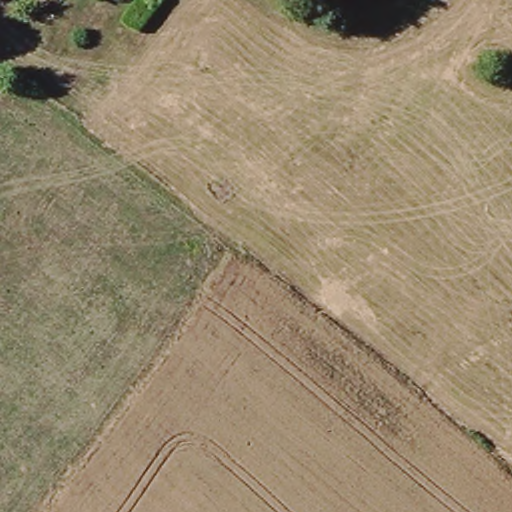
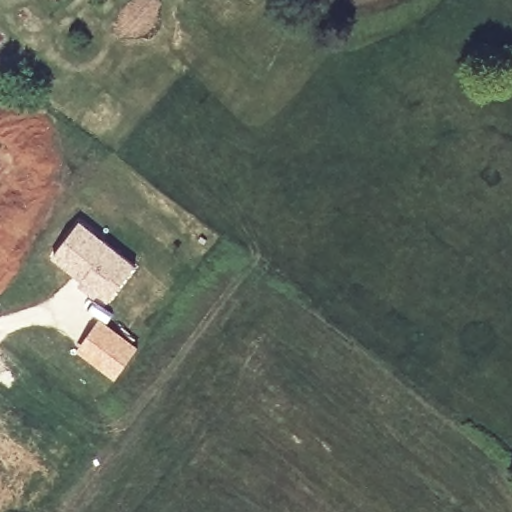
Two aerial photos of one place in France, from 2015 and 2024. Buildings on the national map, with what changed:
new [(79,219),(137,264),(108,302),(49,257),(79,219)]
new [(100,316),(139,345),(115,376),(77,347),(100,316)]

